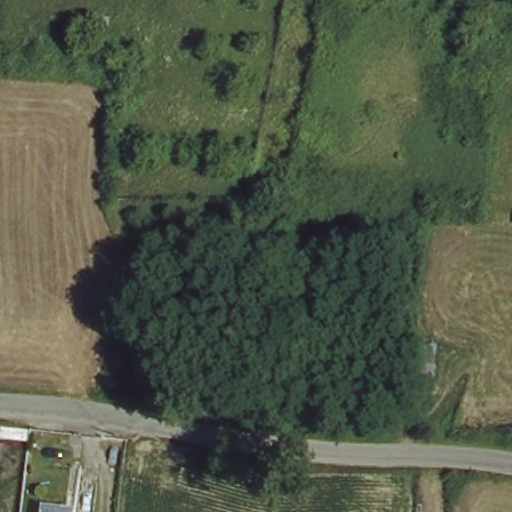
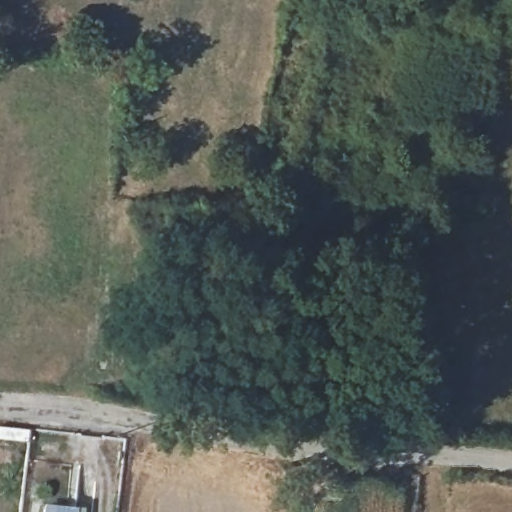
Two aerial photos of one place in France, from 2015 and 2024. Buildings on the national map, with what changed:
[]

